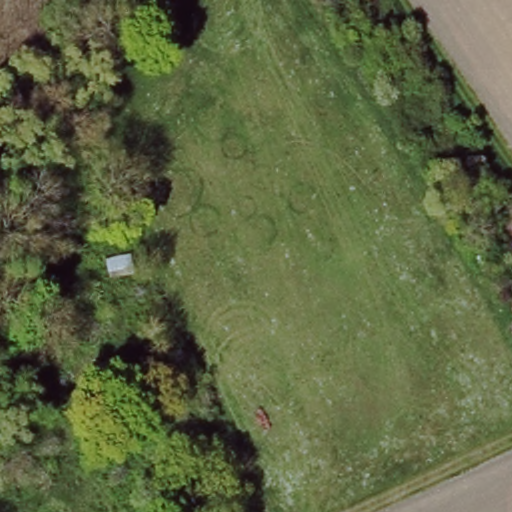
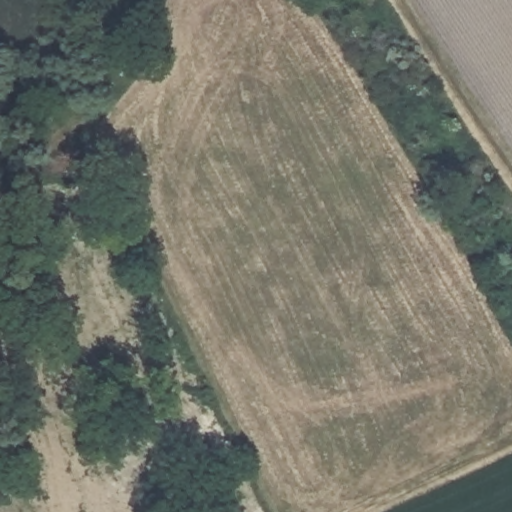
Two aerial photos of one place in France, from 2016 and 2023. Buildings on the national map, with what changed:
unchanged [(131,255),(134,272),(105,276),(104,259),(131,255)]

